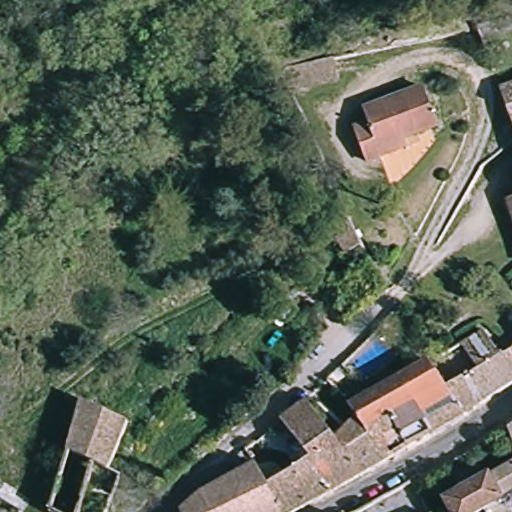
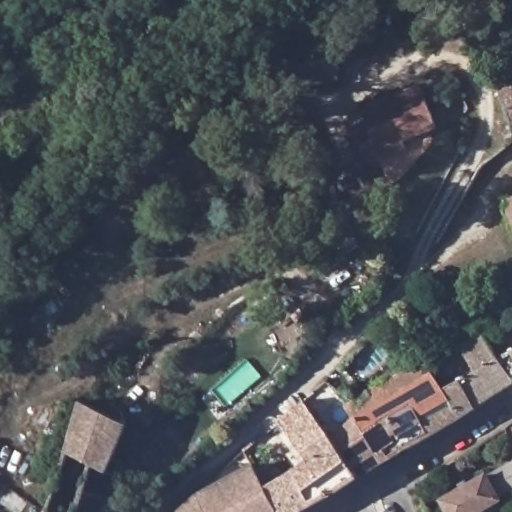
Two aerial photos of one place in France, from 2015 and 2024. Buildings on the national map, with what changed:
unchanged [(491,57),(481,31),(500,25),(510,51),(491,57)]
unchanged [(294,91),(289,68),(344,56),(349,79),(294,91)]
unchanged [(512,81),(512,116),(501,85),(512,81)]
unchanged [(381,155),(366,159),(353,125),(369,120),(362,102),(423,83),(437,121),(406,131),(411,144),(381,155)]
unchanged [(368,245),(351,252),(338,227),(354,219),(368,245)]
unchanged [(484,333),(494,350),(500,359),(512,377),(512,381),(474,406),(445,356),(484,333)]
unchanged [(512,351),(512,377),(500,359),(512,351)]
unchanged [(445,356),(474,406),(429,435),(416,415),(448,393),(429,364),(445,356)]
unchanged [(416,415),(429,435),(406,446),(377,395),(400,380),(429,364),(448,393),(416,415)]
unchanged [(359,425),(351,410),(377,395),(406,446),(355,475),(334,441),(359,425)]
unchanged [(108,512),(56,512),(81,397),(128,417),(106,469),(120,475),(108,512)]
unchanged [(274,482),(300,465),(279,435),(273,425),(304,398),(334,441),(355,475),(286,512),(279,512),(266,487),(274,482)]
unchanged [(512,420),(512,453),(503,428),(512,420)]
unchanged [(248,469),(254,466),(266,487),(279,512),(180,512),(178,507),(199,495),(241,472),(239,466),(245,463),(248,469)]
unchanged [(472,512),(439,512),(434,501),(509,463),(512,470),(512,492),(472,512)]
unchanged [(176,509),(178,507),(180,512),(178,512),(176,509)]
unchanged [(355,510),(356,512),(351,512),(355,510)]

